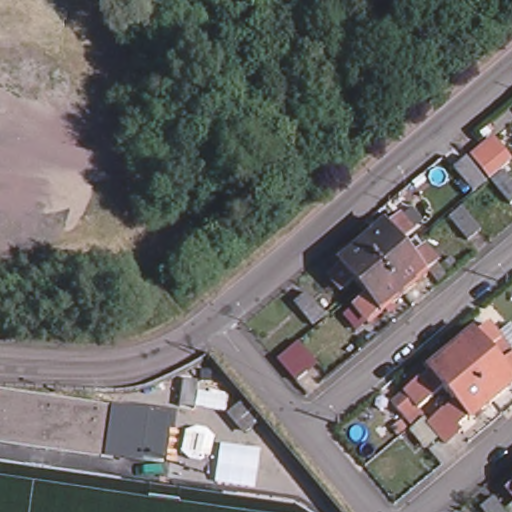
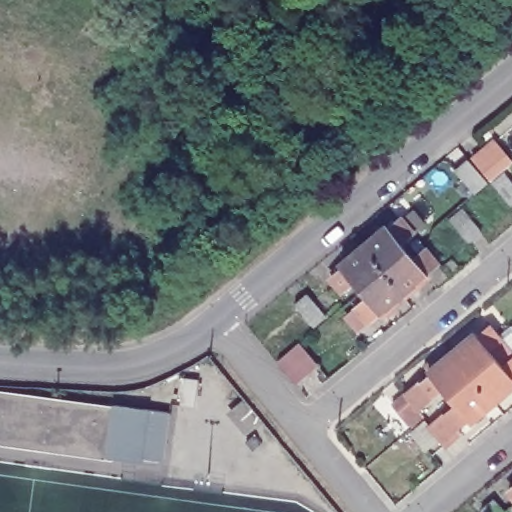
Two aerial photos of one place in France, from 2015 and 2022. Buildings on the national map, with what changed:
unchanged [(493,188),(480,199),(459,172),(472,161),(493,188)]
unchanged [(512,177),(512,198),(500,184),(510,174),(512,177)]
unchanged [(466,210),(483,231),(470,242),(454,221),(466,210)]
unchanged [(361,307),(374,296),(361,280),(348,291),(335,274),(347,263),(345,261),(388,225),(390,227),(402,218),(415,235),(405,244),(417,260),(429,251),(439,263),(427,273),(430,276),(386,311),(384,309),(371,320),(361,307)]
unchanged [(300,303),(312,291),(330,315),(318,325),(300,303)]
unchanged [(430,423),(445,410),(458,399),(445,384),(433,395),(432,393),(418,405),(422,410),(410,420),(393,399),(420,375),(423,378),(434,369),(432,367),(427,360),(435,353),(440,360),(453,349),(475,330),(477,333),(489,323),(500,338),(512,351),(512,386),(474,419),(472,416),(459,426),(442,440),(430,423)]
unchanged [(0,439),(0,390),(109,404),(102,450),(102,453),(0,439)]
unchanged [(244,401),(260,421),(247,432),(230,411),(244,401)]
unchanged [(102,450),(109,404),(109,402),(141,406),(135,454),(102,450)]
unchanged [(162,409),(157,456),(135,454),(141,406),(162,409)]
unchanged [(512,486),(512,500),(505,492),(512,486)]
unchanged [(509,512),(487,512),(485,509),(498,498),(509,512)]

